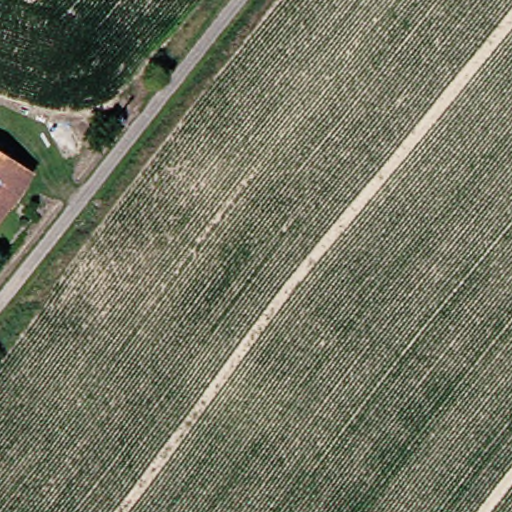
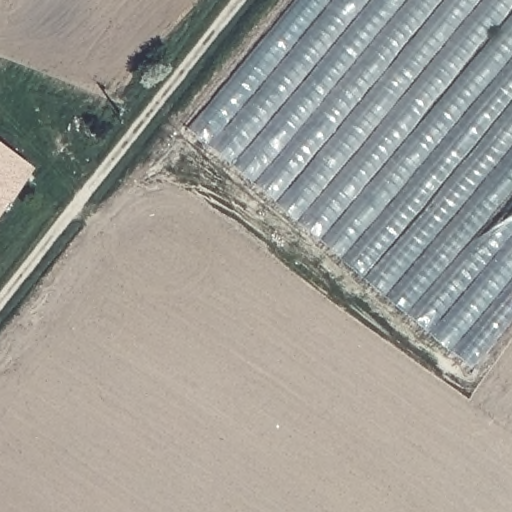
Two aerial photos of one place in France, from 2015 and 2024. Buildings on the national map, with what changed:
new [(295,0),(512,0),(512,330),(477,372),(185,131),(295,0)]
unchanged [(0,203),(0,158),(20,173),(0,203)]

